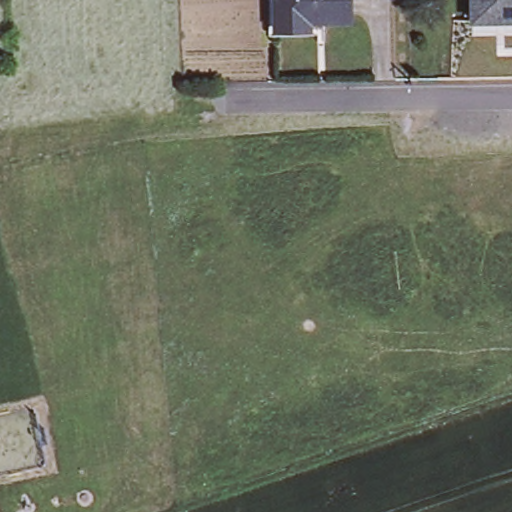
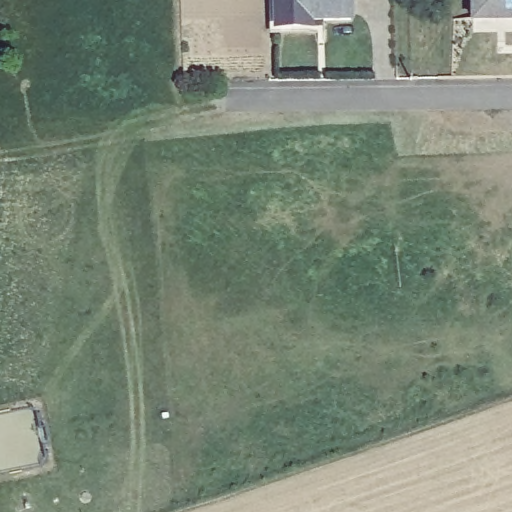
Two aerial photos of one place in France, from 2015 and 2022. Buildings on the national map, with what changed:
unchanged [(309,27),(273,28),(271,0),(347,0),(348,20),(309,20),(309,27)]
unchanged [(468,0),(512,0),(512,22),(469,22),(468,0)]

